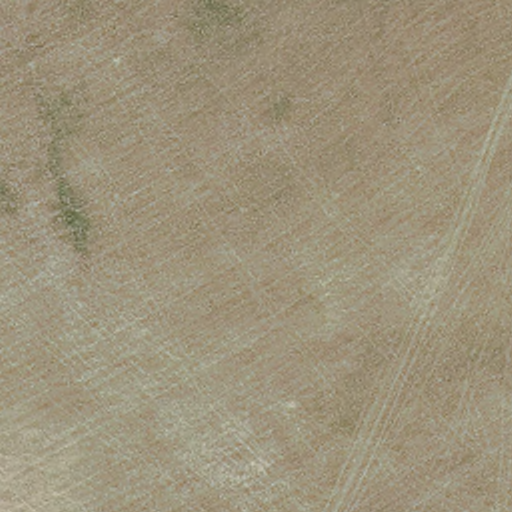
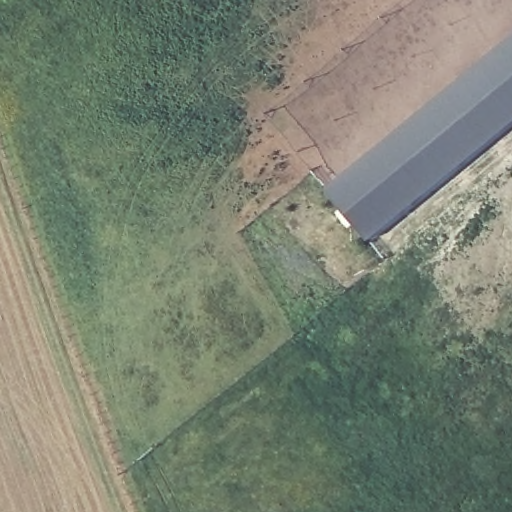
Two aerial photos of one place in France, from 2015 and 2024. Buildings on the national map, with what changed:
new [(512,40),(512,122),(377,236),(336,190),(512,40)]

